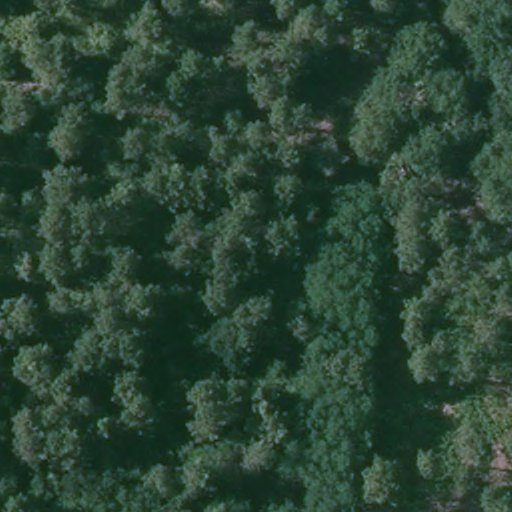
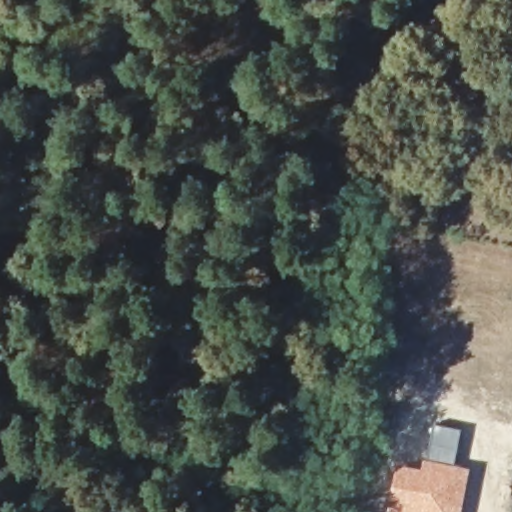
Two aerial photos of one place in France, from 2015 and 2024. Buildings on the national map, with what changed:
new [(433,425),(461,430),(454,466),(425,460),(433,425)]
new [(394,463),(420,468),(422,459),(425,460),(454,466),(470,469),(461,512),(383,512),(394,463)]

